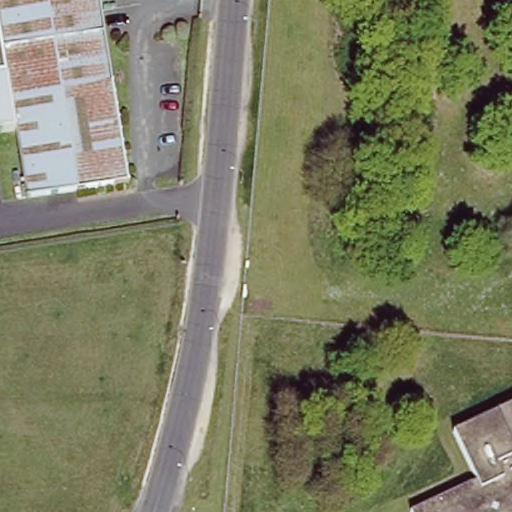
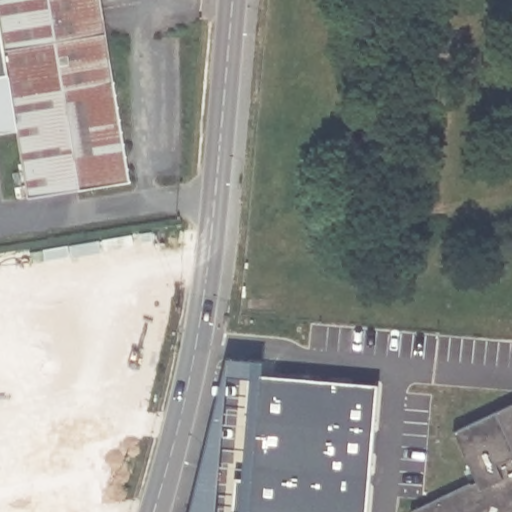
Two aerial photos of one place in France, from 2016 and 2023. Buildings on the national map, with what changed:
unchanged [(0,0),(99,0),(127,179),(26,195),(5,72),(0,42),(0,0)]
unchanged [(0,42),(5,72),(0,72),(0,42)]
new [(190,512),(227,359),(262,360),(262,376),(380,385),(369,512),(190,512)]
unchanged [(476,482),(453,432),(512,404),(512,512),(411,512),(476,482)]

